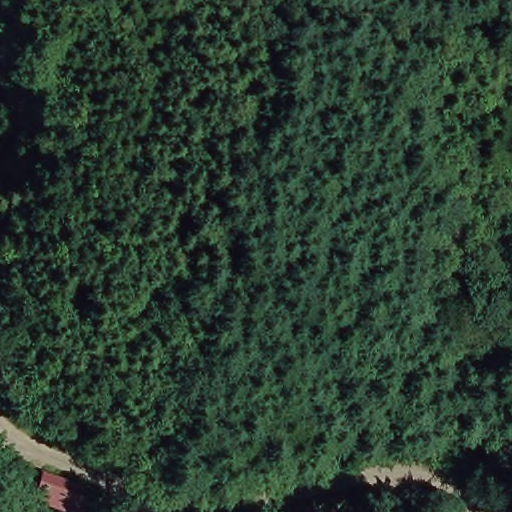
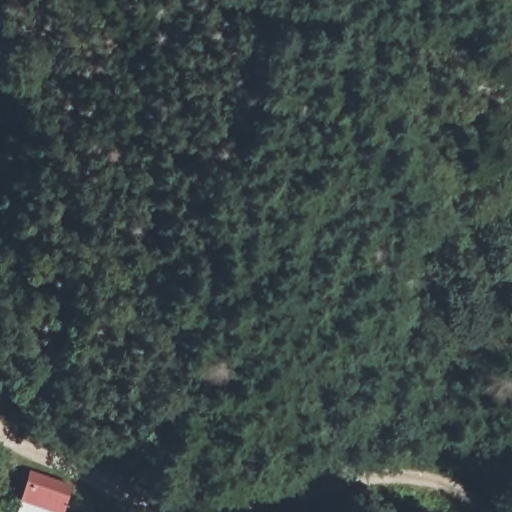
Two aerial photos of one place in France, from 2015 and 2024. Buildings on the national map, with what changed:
unchanged [(60,512),(49,512),(2,483),(20,456),(74,490),(60,512)]

